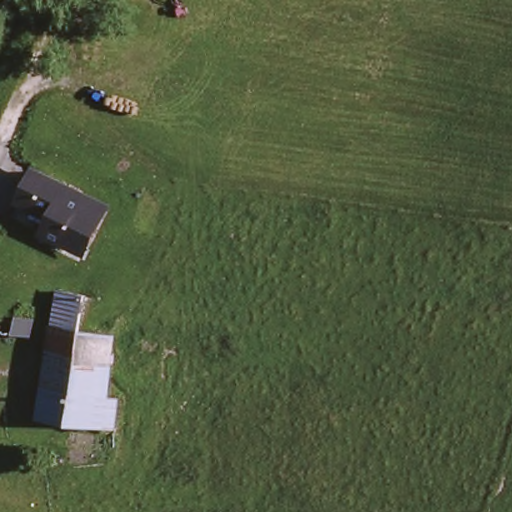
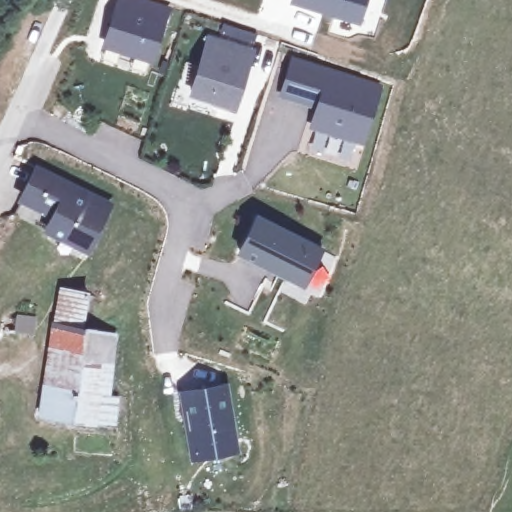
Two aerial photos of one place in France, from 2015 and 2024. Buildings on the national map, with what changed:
new [(116,0),(147,0),(172,7),(155,66),(101,49),(116,0)]
new [(288,0),(368,0),(360,26),(287,3),(288,0)]
new [(206,37),(255,51),(237,112),(188,98),(206,37)]
new [(315,110),(277,99),(290,58),(383,87),(366,147),(309,132),(315,110)]
unchanged [(53,172),(85,190),(82,197),(118,217),(100,249),(82,239),(80,243),(61,233),(29,216),(37,201),(53,172)]
new [(325,249),(304,289),(234,254),(255,215),(325,249)]
unchanged [(92,295),(87,322),(86,330),(115,336),(104,395),(123,400),(116,430),(42,414),(60,325),(61,317),(67,290),(92,295)]
unchanged [(40,322),(37,337),(20,333),(24,319),(40,322)]
new [(229,385),(241,454),(190,464),(178,393),(229,385)]

